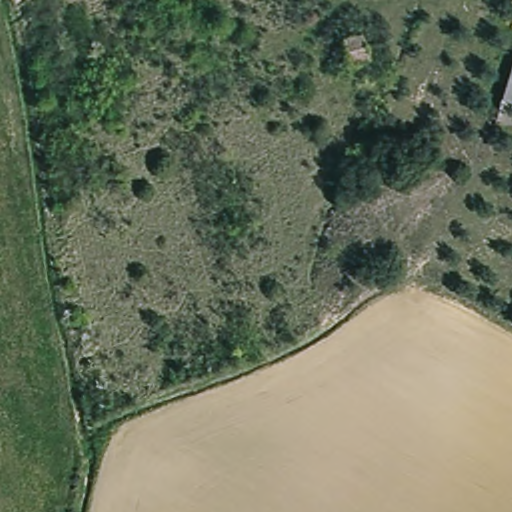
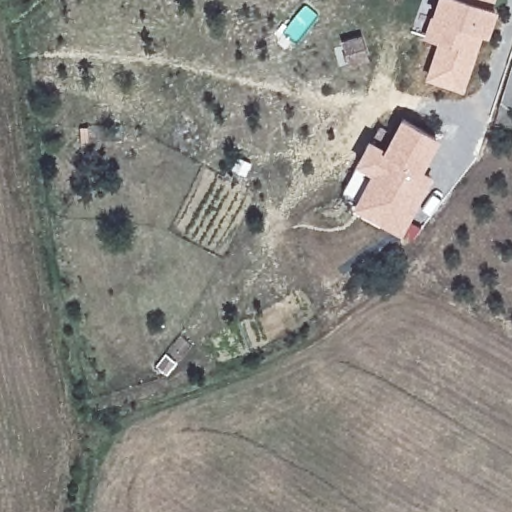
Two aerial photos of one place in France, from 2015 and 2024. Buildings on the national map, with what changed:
new [(440,41),(411,30),(421,0),(497,0),(487,33),(480,31),(461,87),(428,76),(440,41)]
unchanged [(351,69),(343,44),(367,37),(375,62),(351,69)]
unchanged [(512,58),(512,107),(497,103),(510,57),(512,58)]
new [(403,118),(437,137),(418,169),(429,176),(399,230),(383,220),(379,226),(352,212),(359,200),(343,191),(371,143),(386,152),(392,139),(403,118)]

